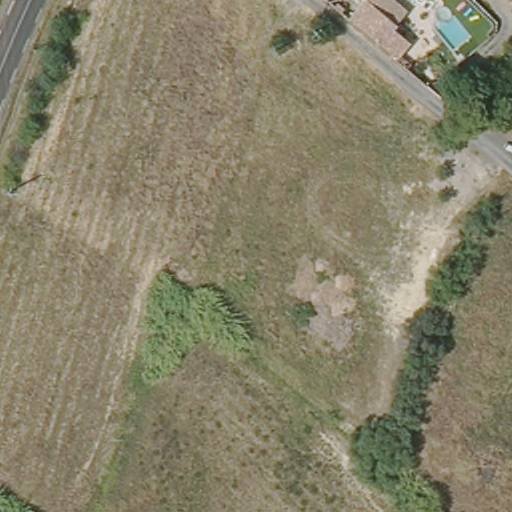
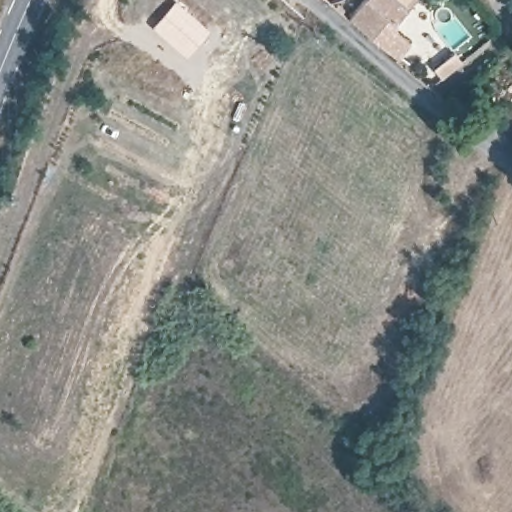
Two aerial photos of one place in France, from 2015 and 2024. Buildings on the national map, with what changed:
unchanged [(408,39),(393,57),(383,47),(346,16),(359,0),(396,0),(405,7),(391,25),(408,39)]
new [(175,1),(210,32),(186,57),(153,27),(175,1)]
unchanged [(448,42),(440,49),(430,37),(438,31),(448,42)]

